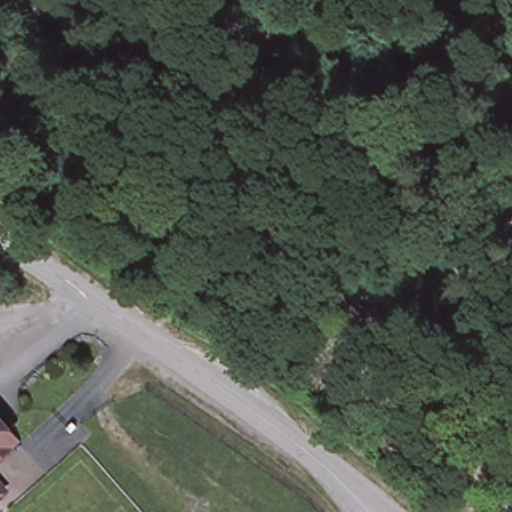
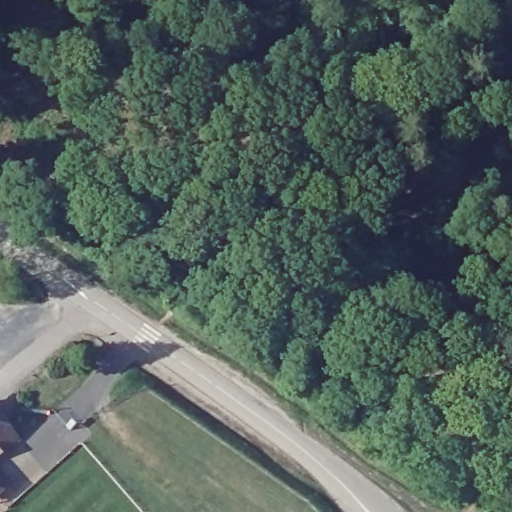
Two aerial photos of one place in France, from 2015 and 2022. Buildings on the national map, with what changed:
unchanged [(14,437),(18,440),(0,456),(0,422),(14,437)]
unchanged [(0,493),(0,486),(3,490),(0,493)]

